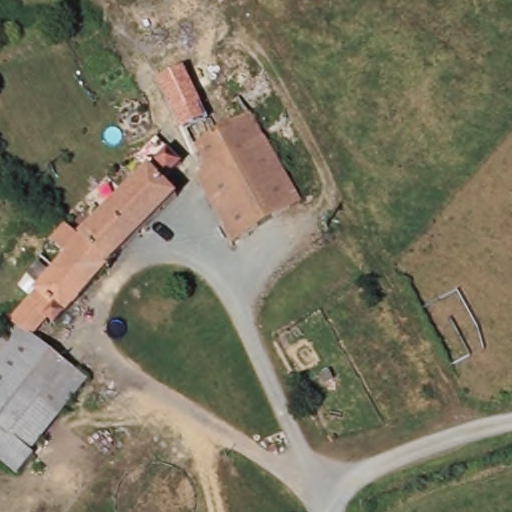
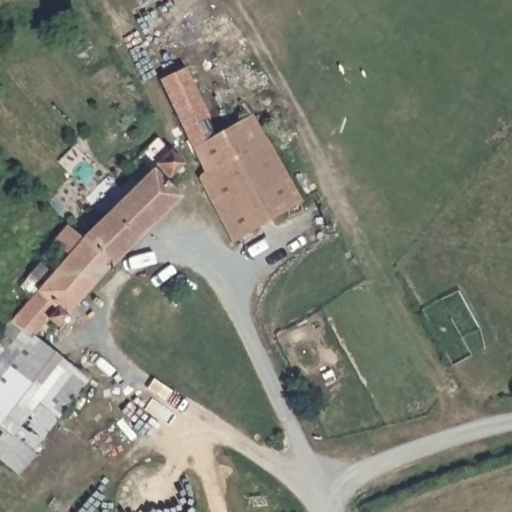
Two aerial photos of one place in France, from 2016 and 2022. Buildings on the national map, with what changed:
unchanged [(182,70),(205,119),(239,100),(255,119),(299,204),(230,245),(197,179),(201,174),(157,82),(182,70)]
unchanged [(108,269),(99,260),(79,240),(148,172),(140,164),(161,145),(183,168),(165,186),(177,199),(111,268),(109,270),(108,269)]
unchanged [(20,473),(18,476),(11,469),(0,460),(0,334),(27,303),(30,299),(20,288),(65,229),(67,228),(79,240),(99,260),(108,269),(109,270),(87,294),(56,324),(54,327),(48,322),(35,339),(90,383),(97,388),(69,424),(62,419),(57,416),(29,451),(34,454),(20,473)]

